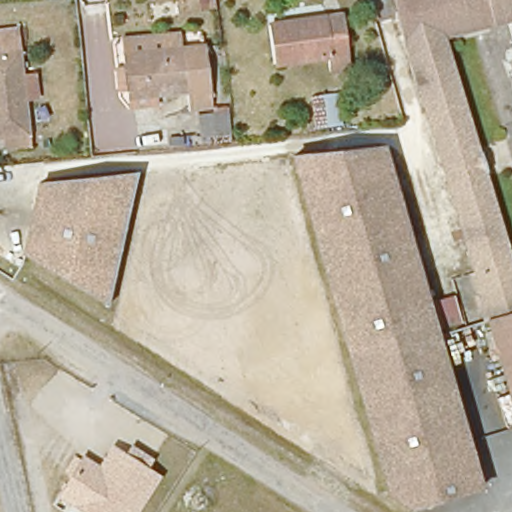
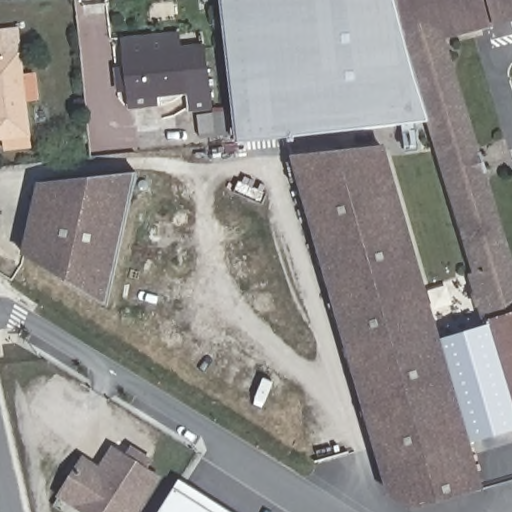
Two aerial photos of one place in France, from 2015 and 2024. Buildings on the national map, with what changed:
new [(407,57),(426,122),(235,143),(219,0),(393,0),(407,57)]
unchanged [(483,339),(491,336),(487,323),(481,325),(467,278),(473,276),(426,122),(407,57),(393,0),(512,0),(512,19),(450,35),(440,37),(512,276),(512,406),(496,352),(487,355),(483,339)]
demolished [(352,72),(329,75),(327,62),(272,70),(270,29),(346,20),(352,72)]
unchanged [(0,154),(0,32),(16,32),(24,142),(25,152),(0,154)]
unchanged [(134,111),(132,100),(131,91),(123,92),(120,70),(129,70),(125,38),(181,33),(183,50),(209,47),(215,110),(192,111),(190,95),(160,97),(161,110),(134,111)]
demolished [(344,130),(318,134),(311,100),(338,95),(344,130)]
unchanged [(213,140),(211,120),(227,118),(229,139),(213,140)]
unchanged [(291,151),(380,142),(478,485),(410,506),(388,490),(291,151)]
unchanged [(135,176),(105,309),(22,256),(35,184),(135,176)]
new [(436,338),(481,325),(487,323),(491,336),(483,339),(487,355),(496,352),(512,407),(512,430),(466,442),(436,338)]
unchanged [(80,463),(97,473),(110,452),(122,460),(127,451),(147,463),(142,472),(155,480),(135,512),(81,512),(59,498),(80,463)]
new [(232,512),(159,512),(180,479),(232,512)]

